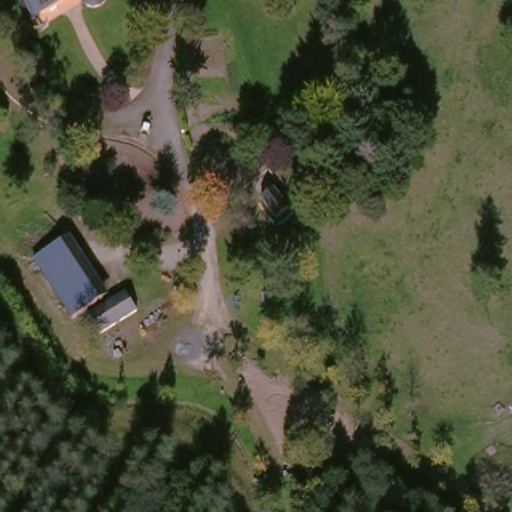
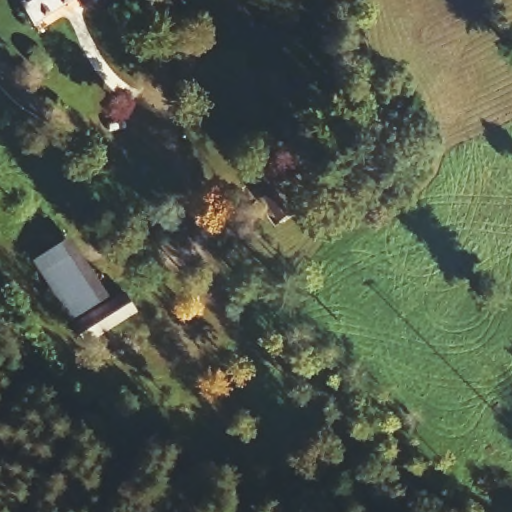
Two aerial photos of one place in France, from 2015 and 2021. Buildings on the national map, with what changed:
unchanged [(15,0),(70,0),(31,25),(15,0)]
unchanged [(99,10),(93,12),(88,12),(85,11),(81,9),(80,7),(75,0),(105,0),(103,5),(99,10)]
unchanged [(224,190),(217,200),(207,195),(214,183),(224,190)]
unchanged [(272,190),(286,210),(273,219),(259,200),(272,190)]
unchanged [(105,293),(67,320),(29,262),(67,234),(105,293)]
unchanged [(78,330),(88,324),(83,316),(121,292),(134,312),(96,336),(86,343),(78,330)]

